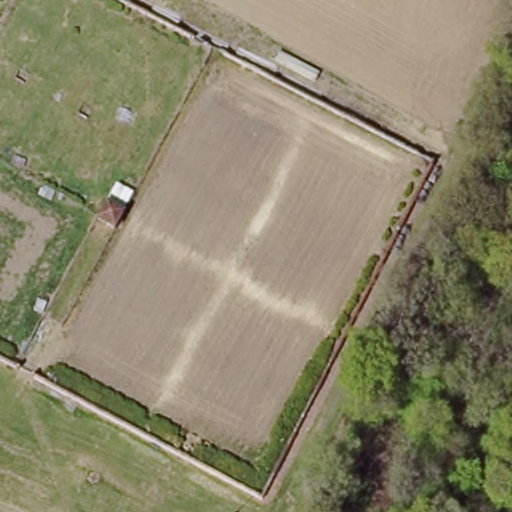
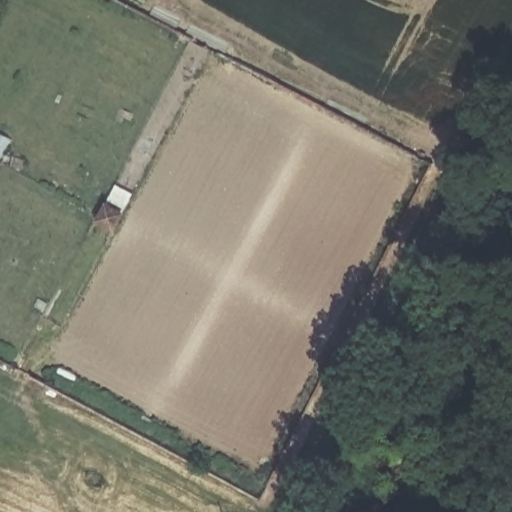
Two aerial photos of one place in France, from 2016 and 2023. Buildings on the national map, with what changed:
unchanged [(127,207),(116,232),(94,219),(104,196),(127,207)]

